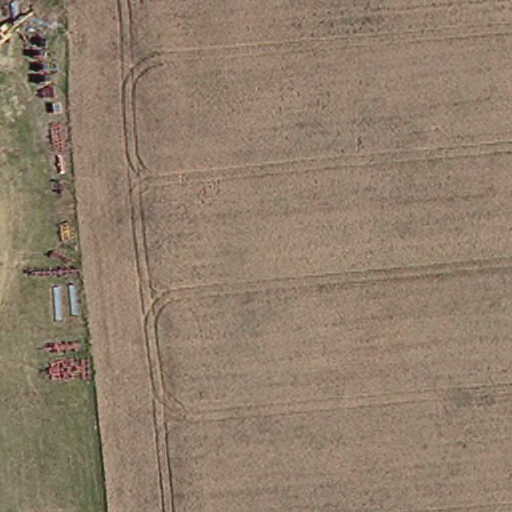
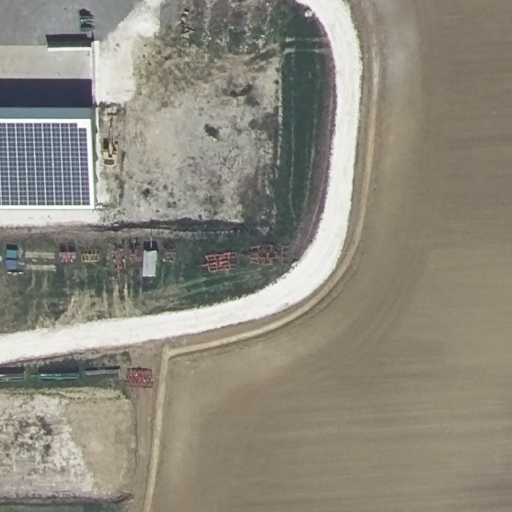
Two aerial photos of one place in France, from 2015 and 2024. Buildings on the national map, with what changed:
new [(97,208),(0,208),(0,104),(98,104),(97,208)]

